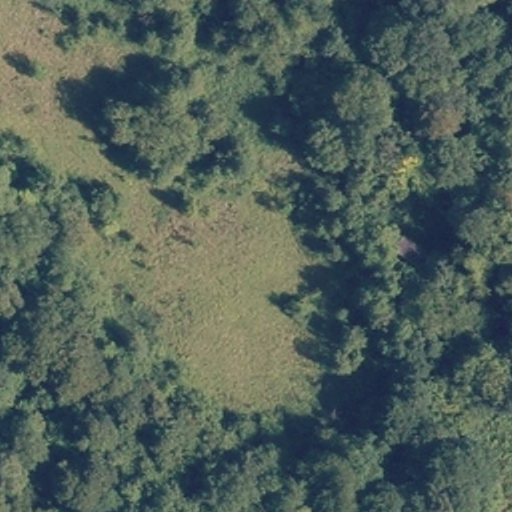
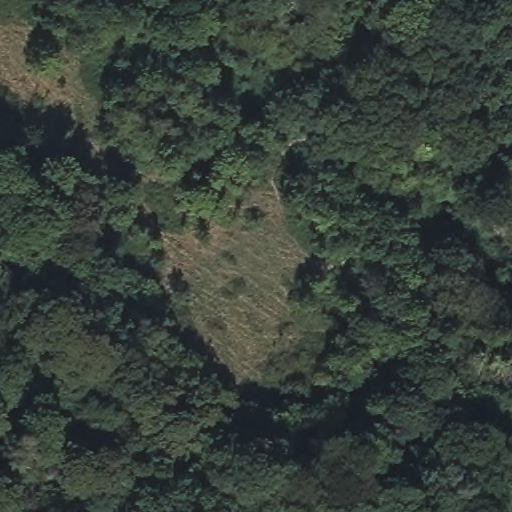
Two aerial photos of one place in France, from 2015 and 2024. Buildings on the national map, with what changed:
unchanged [(438,241),(416,277),(388,258),(409,223),(438,241)]

